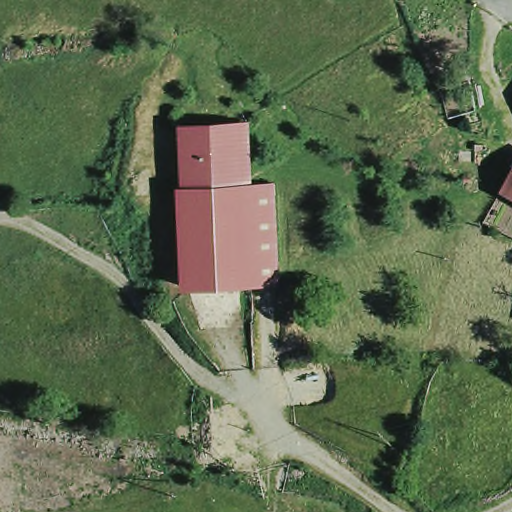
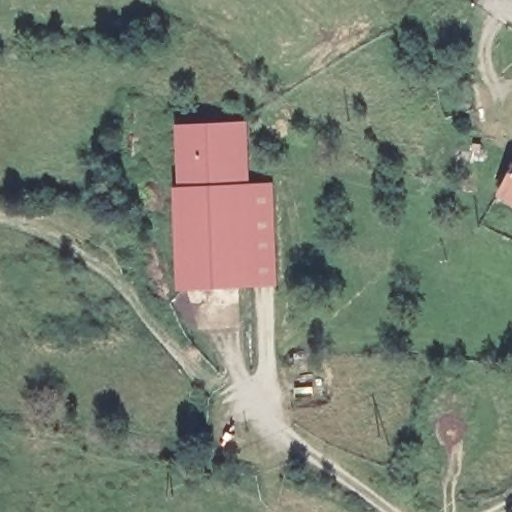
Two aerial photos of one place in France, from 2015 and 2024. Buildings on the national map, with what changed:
unchanged [(242,127),(245,191),(262,189),(272,289),(176,291),(172,192),(182,192),(182,130),(242,127)]
unchanged [(512,174),(512,204),(499,197),(512,174)]

